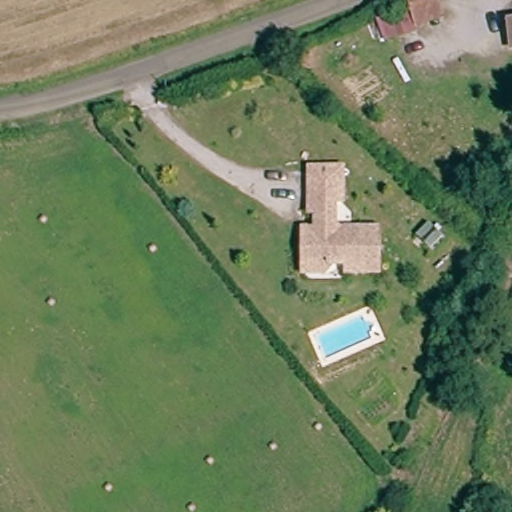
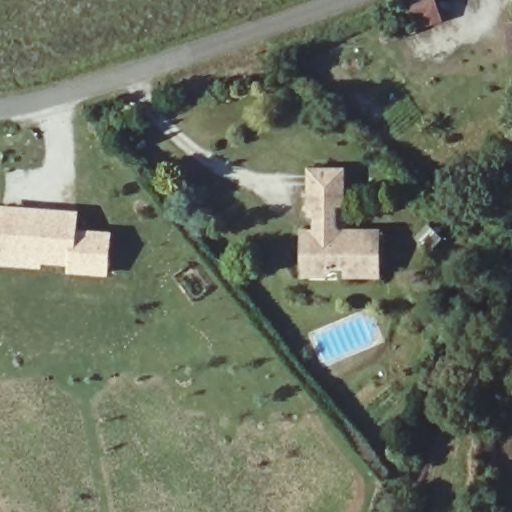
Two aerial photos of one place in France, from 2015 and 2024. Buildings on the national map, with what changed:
unchanged [(408,2),(415,0),(445,0),(451,24),(415,34),(408,2)]
unchanged [(509,26),(512,26),(512,48),(509,26)]
unchanged [(352,206),(345,207),(345,231),(355,240),(363,239),(362,235),(390,234),(391,278),(359,279),(359,270),(345,270),(338,277),(316,256),(323,250),(323,238),(326,237),(326,219),(320,219),(319,175),(351,174),(352,206)]
new [(2,205),(80,210),(79,228),(113,230),(111,276),(69,273),(70,265),(44,263),(43,270),(0,266),(0,211),(1,211),(2,205)]

